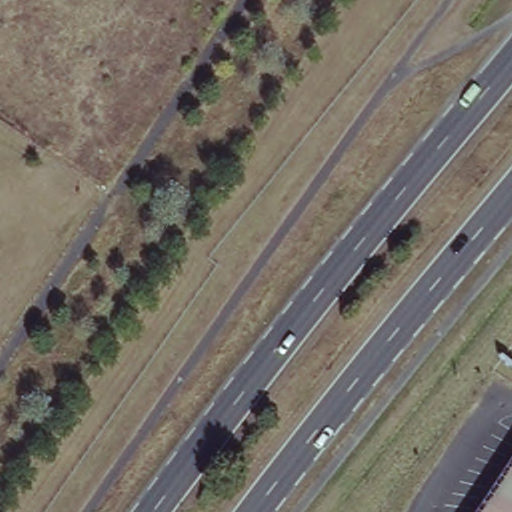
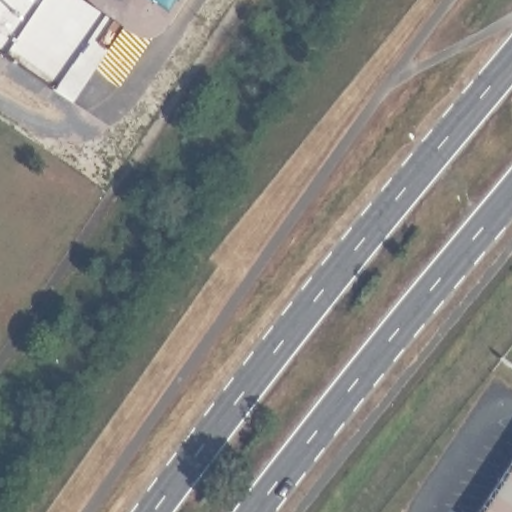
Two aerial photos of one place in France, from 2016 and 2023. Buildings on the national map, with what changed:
new [(51,89),(0,54),(0,0),(82,0),(100,12),(51,89)]
unchanged [(512,512),(484,512),(512,471),(512,512)]

